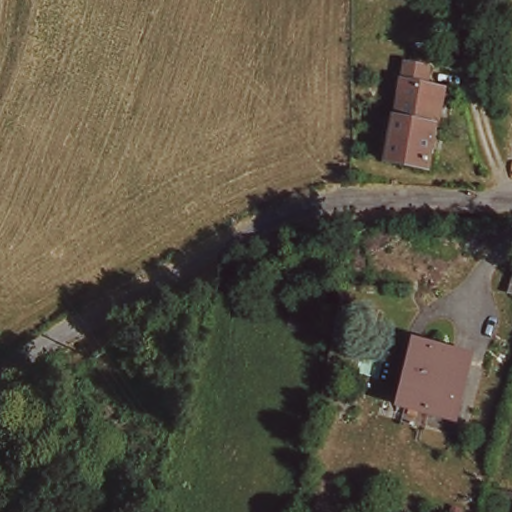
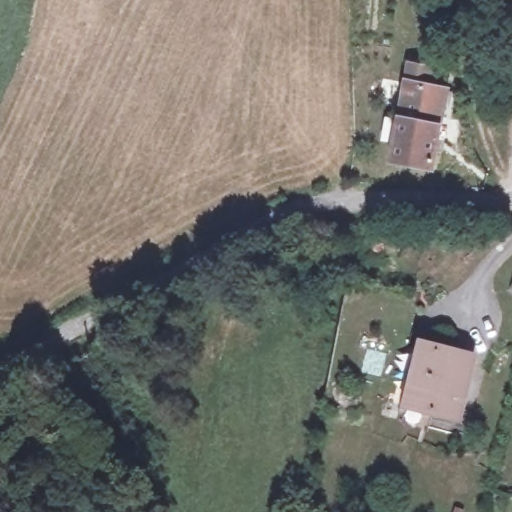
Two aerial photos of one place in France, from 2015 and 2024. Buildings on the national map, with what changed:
unchanged [(435,171),(397,167),(407,84),(410,66),(431,68),(430,86),(445,88),(435,171)]
unchanged [(408,403),(423,347),(465,358),(450,414),(408,403)]

